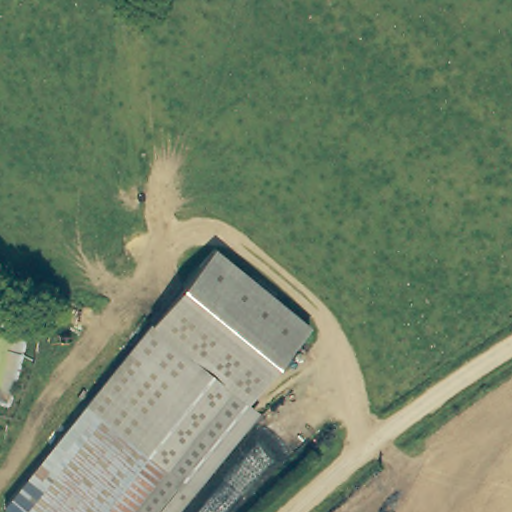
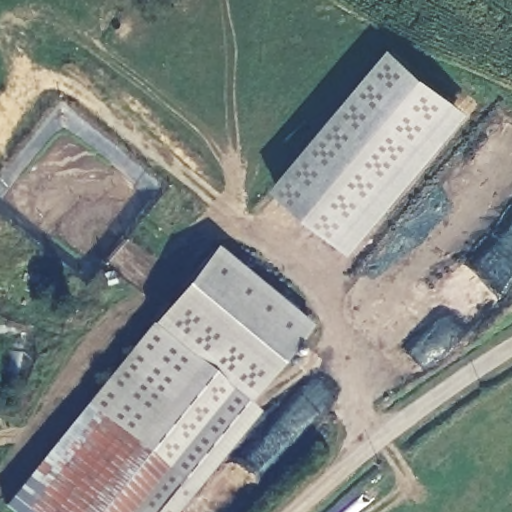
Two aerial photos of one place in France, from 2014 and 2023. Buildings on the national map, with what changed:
new [(354,255),(277,190),(395,49),(471,114),(354,255)]
unchanged [(210,246),(305,321),(181,479),(85,403),(210,246)]
new [(178,512),(155,512),(181,479),(244,400),(260,411),(178,512)]
unchanged [(181,479),(155,512),(30,512),(11,496),(85,403),(181,479)]

